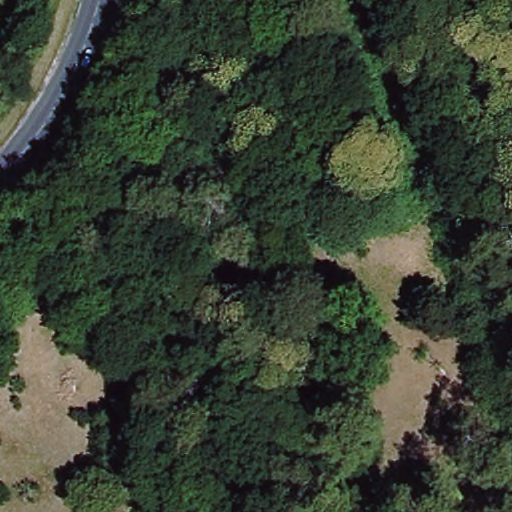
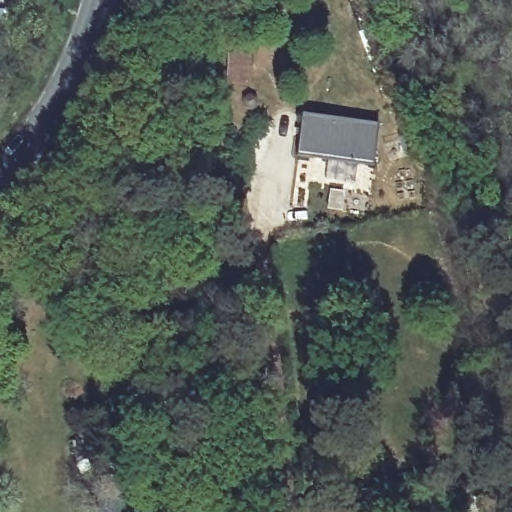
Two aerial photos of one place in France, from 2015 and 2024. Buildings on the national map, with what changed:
new [(232,46),(250,48),(248,86),(230,85),(232,46)]
new [(380,125),(375,166),(296,155),(301,113),(380,125)]

